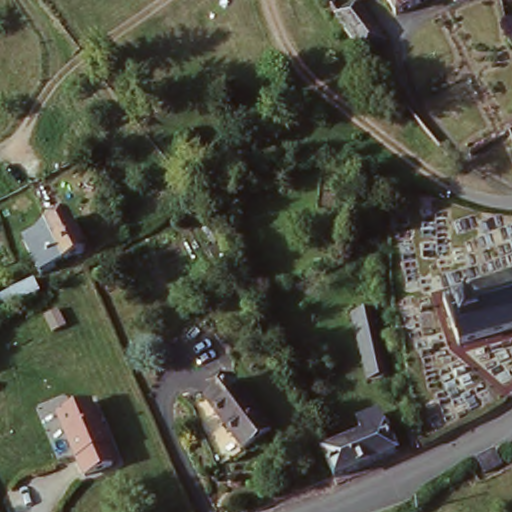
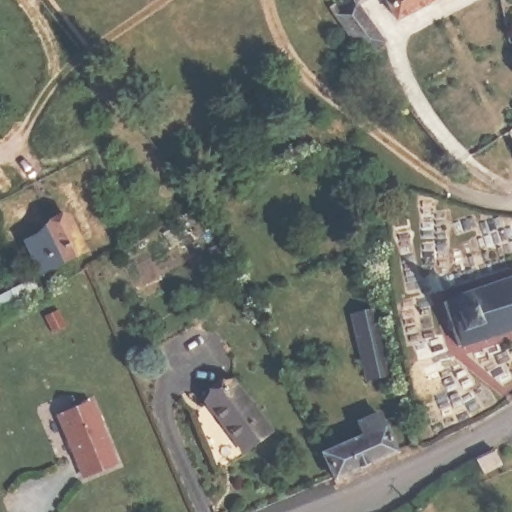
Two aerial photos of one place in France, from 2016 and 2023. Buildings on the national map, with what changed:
unchanged [(352,46),(333,18),(352,4),(350,0),(372,0),(358,11),(385,52),(366,65),(352,46)]
unchanged [(393,29),(378,1),(380,0),(451,0),(393,29)]
unchanged [(42,266),(27,236),(70,216),(86,249),(42,266)]
unchanged [(443,307),(512,283),(512,340),(462,358),(443,307)]
unchanged [(373,393),(347,317),(367,309),(378,332),(380,341),(386,357),(395,381),(396,384),(373,393)]
unchanged [(267,436),(240,457),(202,407),(229,384),(267,436)]
unchanged [(113,466),(85,479),(61,418),(93,404),(110,447),(117,465),(113,466)]
unchanged [(327,464),(371,443),(363,428),(384,418),(402,458),(338,488),(327,464)]
unchanged [(507,467),(488,477),(482,464),(500,454),(507,467)]

